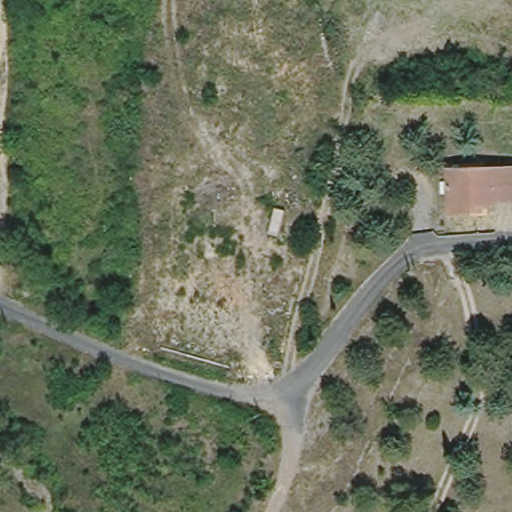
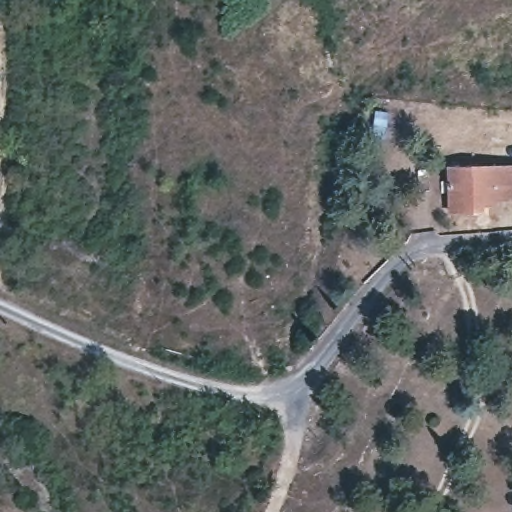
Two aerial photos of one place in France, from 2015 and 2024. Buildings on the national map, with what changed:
unchanged [(478,210),(455,210),(453,167),(512,166),(512,199),(502,199),(502,204),(491,204),(491,210),(478,210)]

